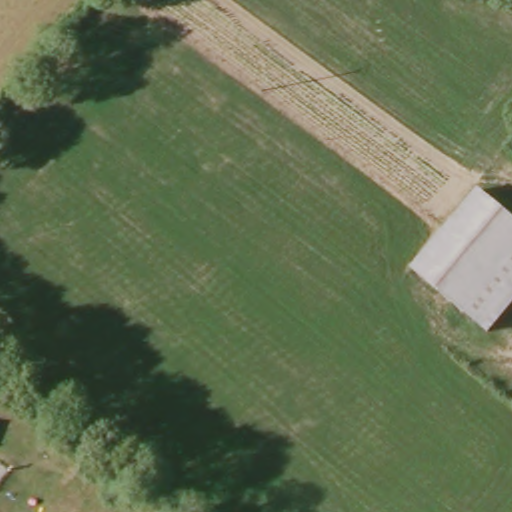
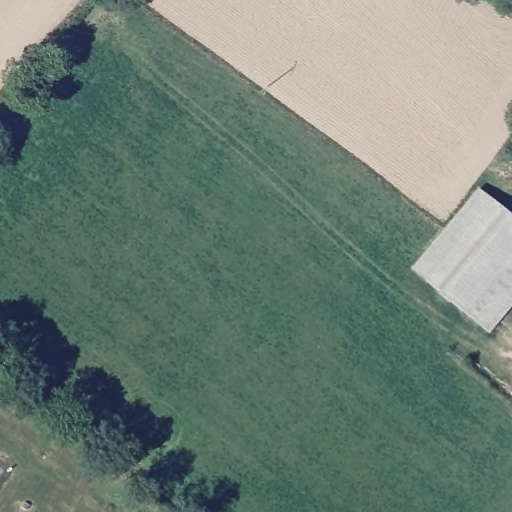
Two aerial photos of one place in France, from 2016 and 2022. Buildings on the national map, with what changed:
unchanged [(420,270),(477,199),(512,228),(512,314),(498,331),(420,270)]

